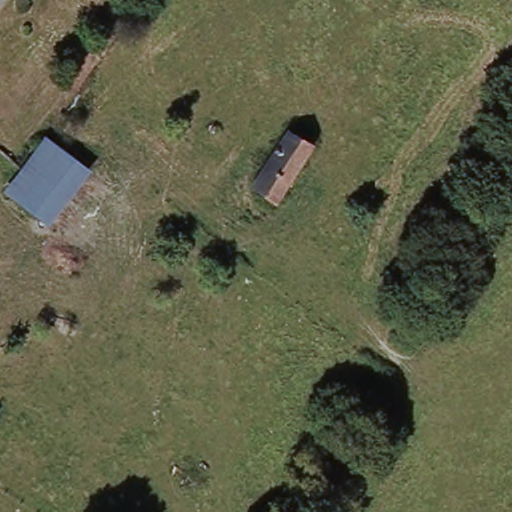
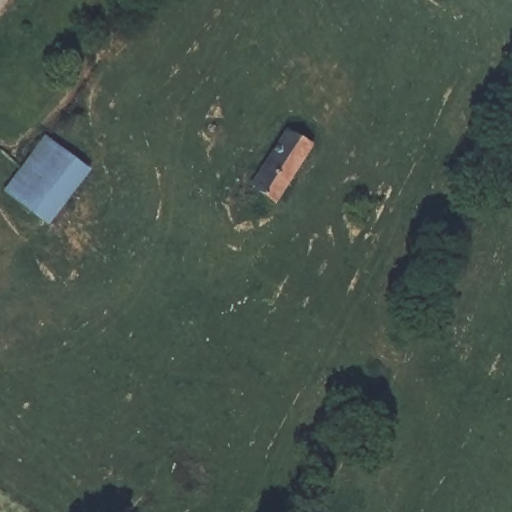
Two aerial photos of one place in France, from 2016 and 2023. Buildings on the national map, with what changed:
unchanged [(280,144),(292,131),(313,147),(269,201),(249,184),(280,144)]
unchanged [(49,227),(42,224),(39,221),(27,213),(17,206),(34,182),(57,150),(87,172),(49,227)]

